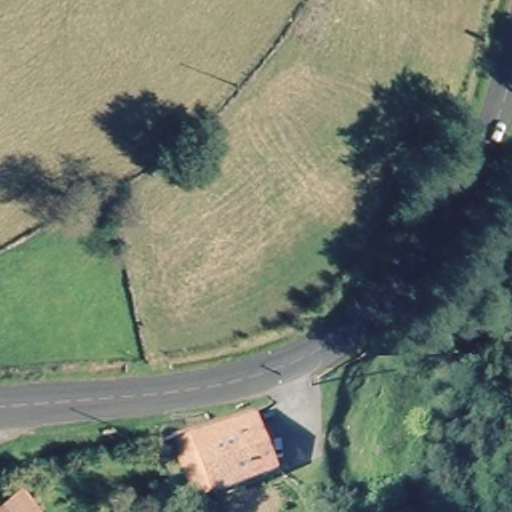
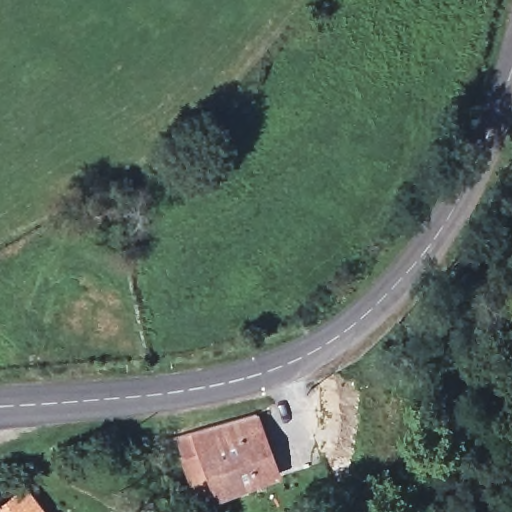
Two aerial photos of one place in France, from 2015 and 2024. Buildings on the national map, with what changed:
unchanged [(254,424),(202,460),(192,446),(246,411),(254,424)]
unchanged [(254,424),(280,465),(229,502),(202,460),(254,424)]
unchanged [(24,490),(43,512),(0,512),(0,511),(24,490)]

